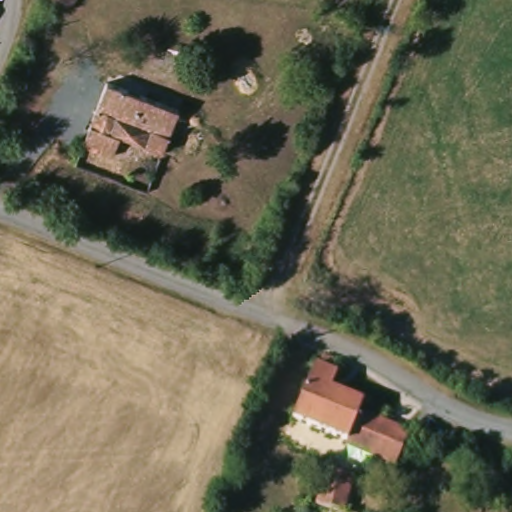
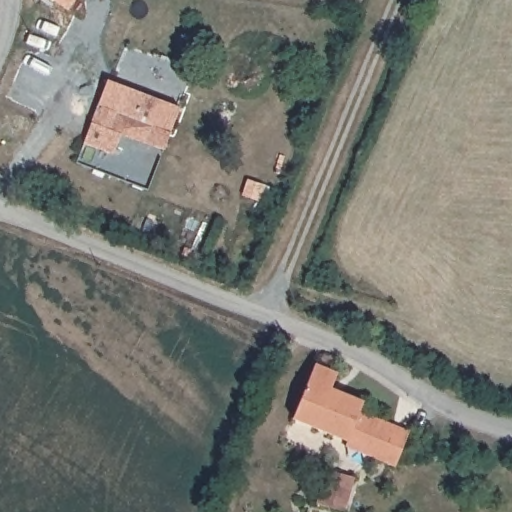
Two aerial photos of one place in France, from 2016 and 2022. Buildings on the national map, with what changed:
unchanged [(63,15),(42,0),(74,0),(63,15)]
unchanged [(160,144),(180,153),(168,181),(148,172),(80,143),(106,79),(175,108),(160,144)]
unchanged [(345,446),(297,427),(318,342),(336,365),(332,376),(337,378),(330,395),(362,407),(359,416),(409,436),(397,473),(376,465),(344,453),(345,446)]
unchanged [(346,512),(321,512),(316,510),(331,476),(357,486),(346,512)]

